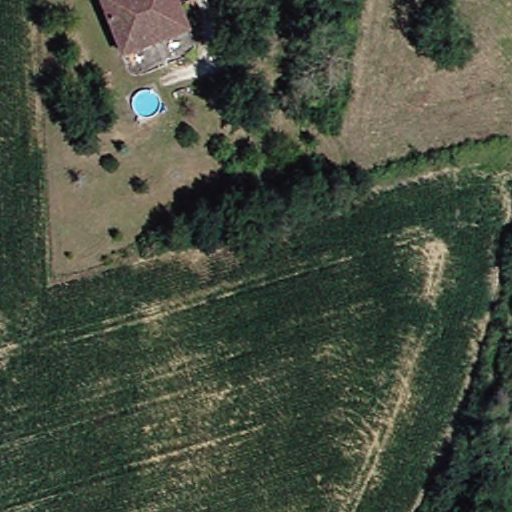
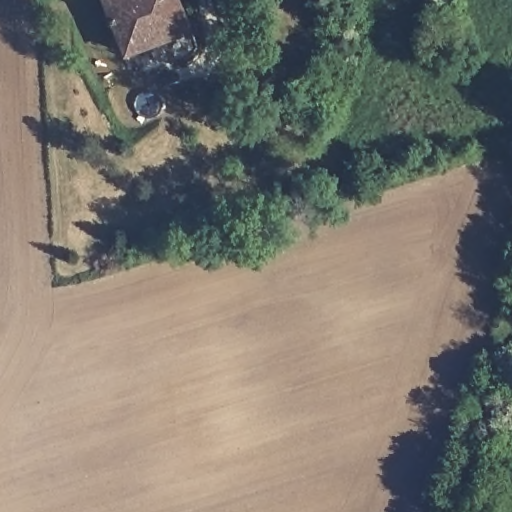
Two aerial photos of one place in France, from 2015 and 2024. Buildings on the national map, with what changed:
unchanged [(192,27),(121,56),(112,35),(98,0),(181,0),(192,27)]

